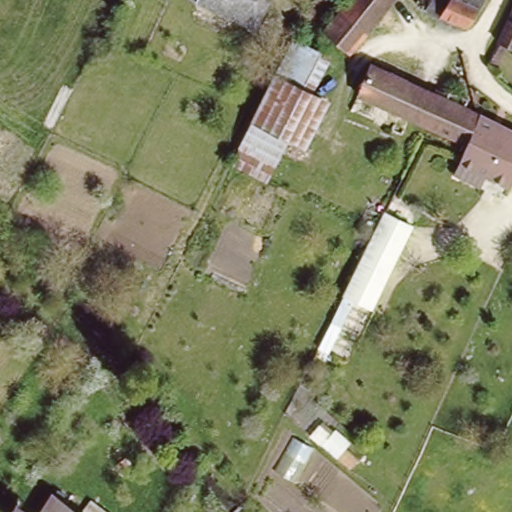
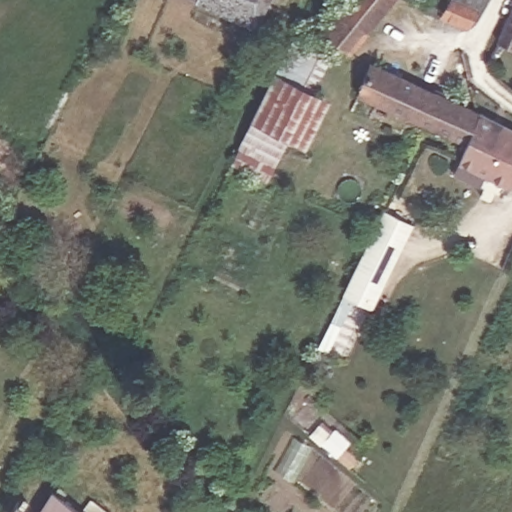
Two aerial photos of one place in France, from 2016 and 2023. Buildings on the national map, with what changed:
unchanged [(260,0),(250,22),(202,0),(260,0)]
unchanged [(327,30),(351,0),(394,0),(353,51),(327,30)]
unchanged [(448,0),(484,0),(480,7),(479,10),(470,25),(442,12),(448,0)]
unchanged [(512,23),(512,45),(504,40),(512,23)]
unchanged [(293,45),(328,62),(310,99),(278,83),(275,82),(286,58),(289,53),(293,45)]
unchanged [(463,135),(462,139),(433,125),(429,133),(419,128),(423,120),(405,112),(397,129),(370,116),(371,113),(348,102),(368,58),(444,94),(447,86),(467,95),(463,103),(475,109),(463,135)]
unchanged [(278,83),(268,103),(256,127),(288,143),(276,166),(241,149),(275,82),(278,83)]
unchanged [(278,83),(310,99),(329,109),(319,129),(307,152),(288,143),(256,127),(268,103),(278,83)]
unchanged [(458,147),(462,139),(463,135),(475,109),(512,127),(512,170),(506,181),(455,155),(458,147)]
unchanged [(392,213),(418,226),(385,292),(360,280),(392,213)]
unchanged [(53,493),(84,512),(41,512),(53,493)]

